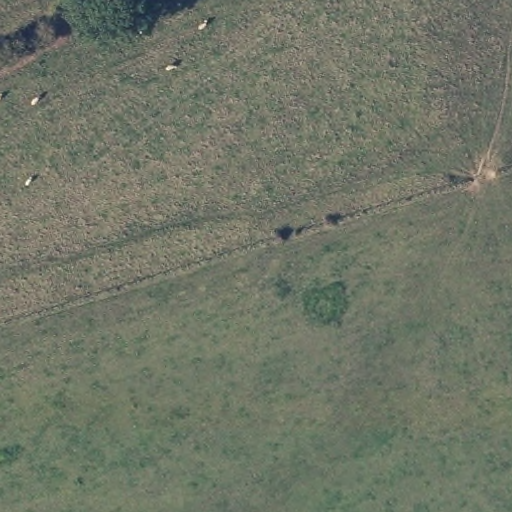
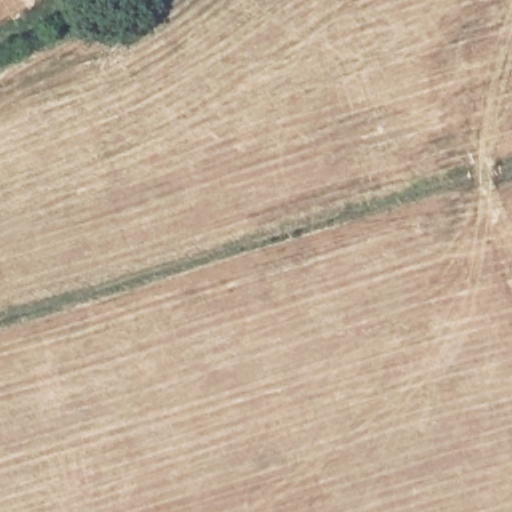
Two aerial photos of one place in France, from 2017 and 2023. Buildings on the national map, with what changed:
[]

